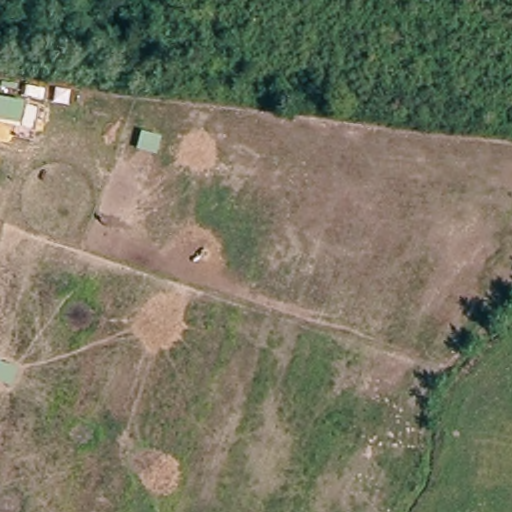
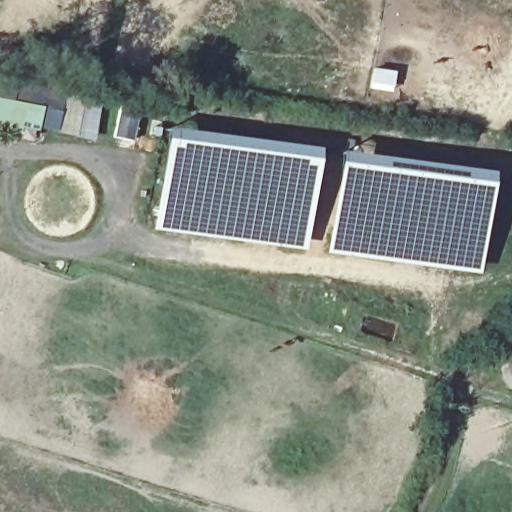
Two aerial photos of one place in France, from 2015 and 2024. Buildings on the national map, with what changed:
new [(371,66),(396,71),(392,92),(367,88),(371,66)]
new [(94,139),(37,129),(21,127),(20,132),(0,129),(0,84),(100,103),(94,139)]
new [(119,106),(139,111),(134,139),(114,136),(119,106)]
new [(162,176),(166,126),(319,147),(306,251),(153,229),(162,176)]
new [(325,241),(326,213),(337,150),(492,171),(479,274),(323,253),(325,241)]

